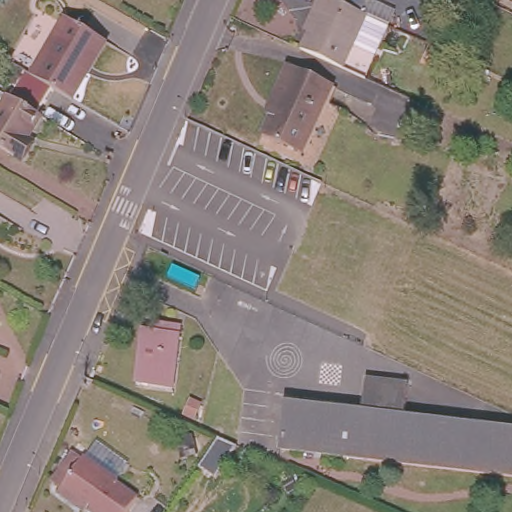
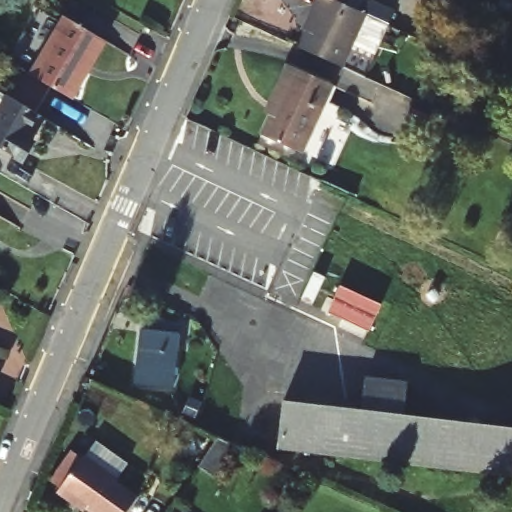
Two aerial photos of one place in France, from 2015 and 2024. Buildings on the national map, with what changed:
unchanged [(310,26),(321,0),(337,0),(344,3),(370,15),(347,70),(303,51),(314,29),(310,26)]
unchanged [(345,0),(344,3),(337,0),(345,0)]
unchanged [(104,37),(85,69),(90,72),(74,99),(31,75),(65,16),(104,37)]
unchanged [(300,154),(260,136),(277,100),(272,97),(286,67),(331,87),(300,154)]
unchanged [(33,142),(35,144),(23,163),(0,149),(0,97),(10,102),(11,100),(45,121),(33,142)]
new [(380,302),(370,328),(328,311),(339,284),(380,302)]
unchanged [(154,330),(154,323),(179,326),(172,385),(138,382),(143,328),(154,330)]
unchanged [(280,447),(285,401),(362,410),(367,377),(412,383),(407,415),(512,427),(512,475),(280,447)]
unchanged [(50,481),(72,450),(81,457),(83,455),(117,480),(115,483),(137,498),(128,512),(94,512),(80,502),(76,506),(57,492),(60,487),(50,481)]

